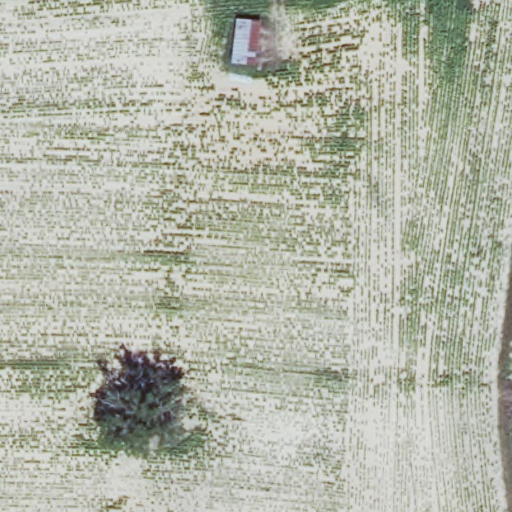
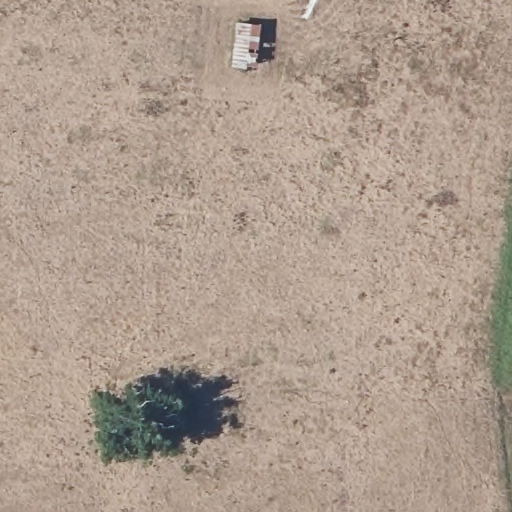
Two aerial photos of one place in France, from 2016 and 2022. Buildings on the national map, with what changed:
unchanged [(264,25),(255,66),(234,64),(240,21),(264,25)]

